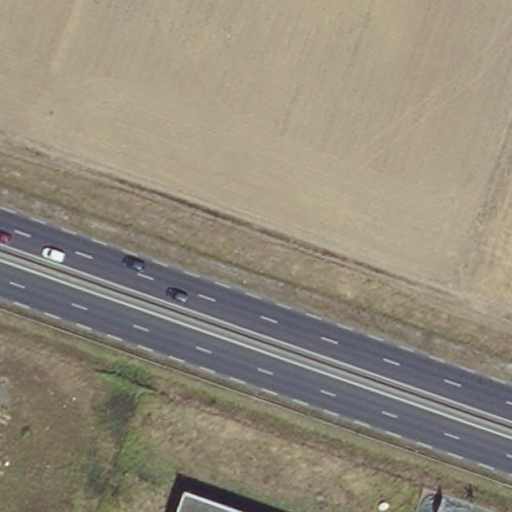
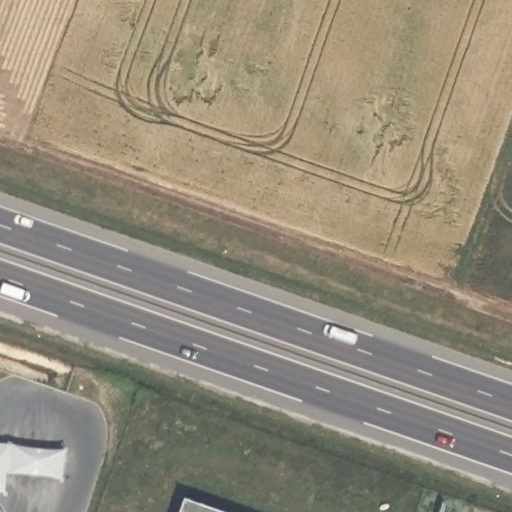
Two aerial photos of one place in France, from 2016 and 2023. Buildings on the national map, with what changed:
new [(62,481),(5,475),(4,480),(3,489),(0,489),(0,443),(66,451),(62,481)]
unchanged [(187,503),(216,512),(184,512),(187,503)]

